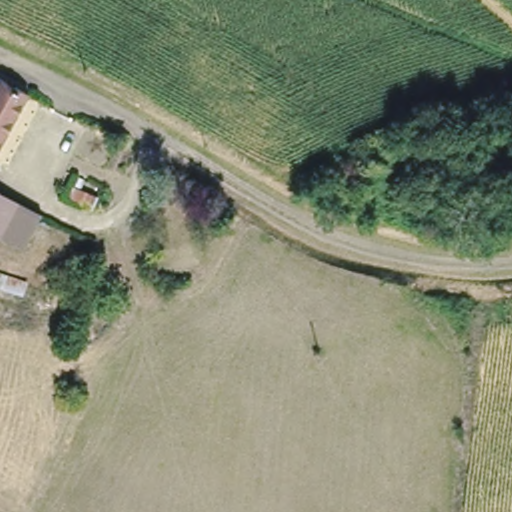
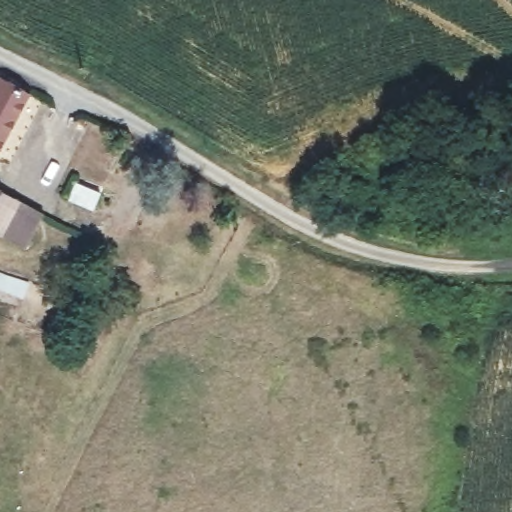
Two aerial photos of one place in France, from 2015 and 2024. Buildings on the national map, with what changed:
unchanged [(0,142),(0,74),(30,91),(0,142)]
unchanged [(20,247),(0,236),(0,192),(36,213),(20,247)]

